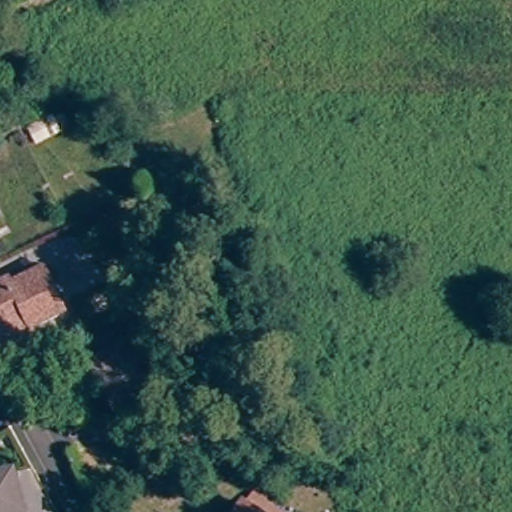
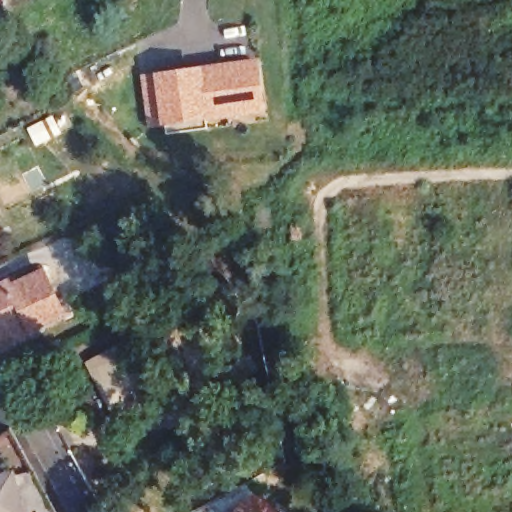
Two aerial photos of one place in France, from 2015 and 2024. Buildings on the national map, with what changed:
new [(268,110),(148,129),(140,75),(260,58),(268,110)]
unchanged [(72,127),(46,140),(39,127),(65,114),(72,127)]
unchanged [(148,285),(140,272),(149,267),(157,280),(148,285)]
unchanged [(0,351),(0,288),(9,283),(11,288),(44,273),(63,315),(31,330),(33,335),(0,351)]
unchanged [(122,423),(106,395),(89,365),(115,351),(120,359),(128,354),(156,404),(122,423)]
unchanged [(222,391),(214,377),(251,357),(258,371),(222,391)]
unchanged [(0,512),(0,483),(22,478),(31,512),(0,512)]
unchanged [(268,512),(247,512),(254,502),(268,512)]

